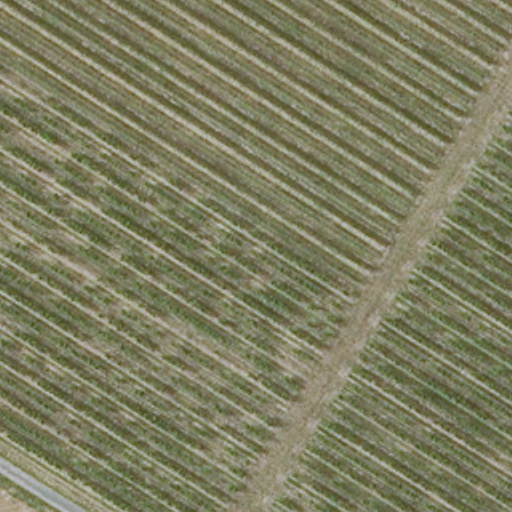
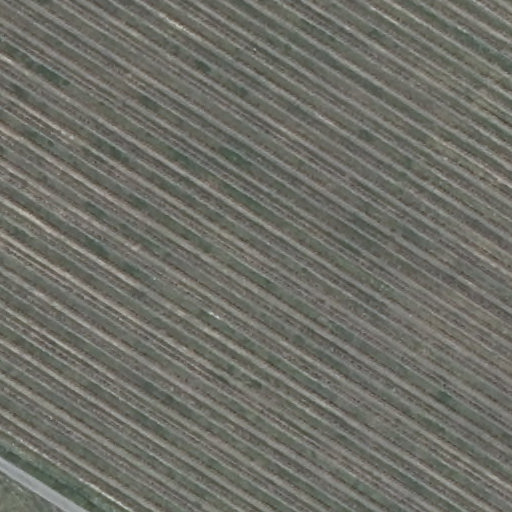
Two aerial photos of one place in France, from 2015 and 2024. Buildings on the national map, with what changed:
[]

